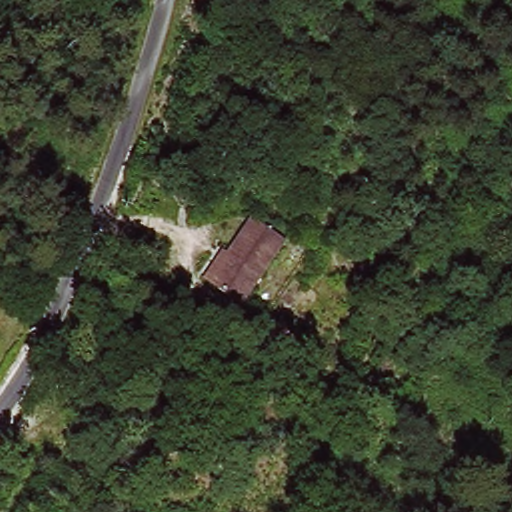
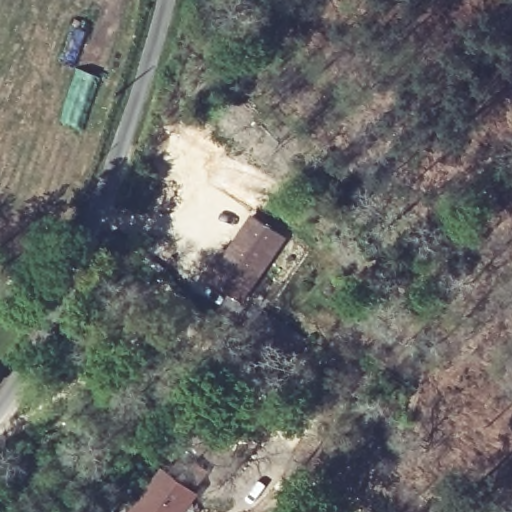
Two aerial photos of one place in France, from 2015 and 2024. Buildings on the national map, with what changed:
unchanged [(221,249),(229,254),(252,218),(283,240),(244,301),(212,282),(204,275),(221,249)]
unchanged [(276,319),(307,341),(291,364),(260,343),(276,319)]
new [(194,498),(183,512),(132,512),(162,473),(194,498)]

